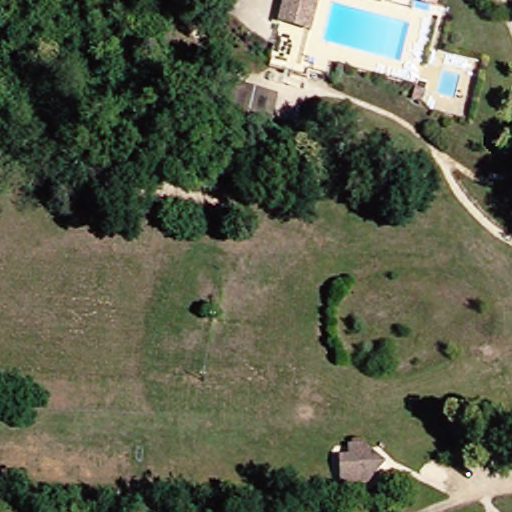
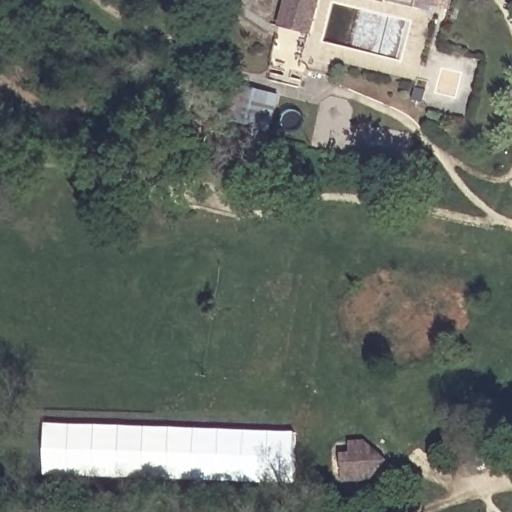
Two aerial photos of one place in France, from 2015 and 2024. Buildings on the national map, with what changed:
unchanged [(274,26),(282,0),(321,0),(313,36),(274,26)]
unchanged [(382,0),(393,0),(393,2),(382,0)]
unchanged [(421,4),(422,0),(439,0),(438,7),(421,4)]
unchanged [(211,117),(215,82),(274,87),(269,126),(211,117)]
new [(43,422),(294,431),(293,485),(43,475),(43,422)]
unchanged [(344,483),(344,452),(380,452),(391,463),(370,482),(344,483)]

